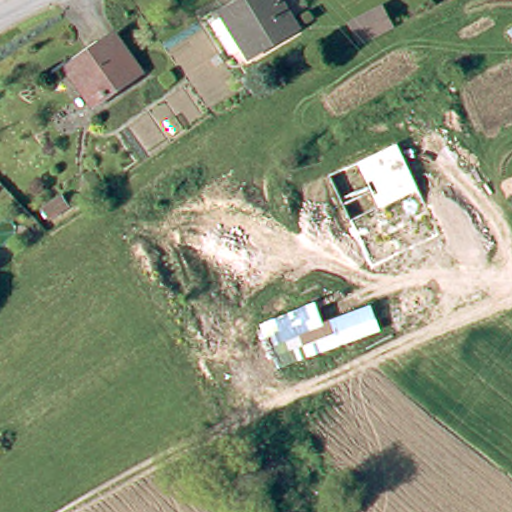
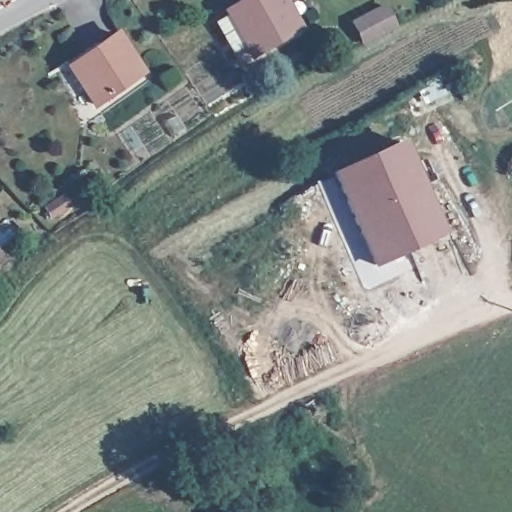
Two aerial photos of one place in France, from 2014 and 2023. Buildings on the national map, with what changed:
unchanged [(228,9),(225,6),(236,0),(287,0),(301,22),(253,51),(247,40),(235,47),(231,45),(217,22),(217,16),(228,9)]
unchanged [(349,17),(380,2),(391,22),(360,39),(349,17)]
unchanged [(118,34),(144,72),(96,106),(70,67),(118,34)]
new [(445,232),(371,267),(327,173),(402,138),(445,232)]

